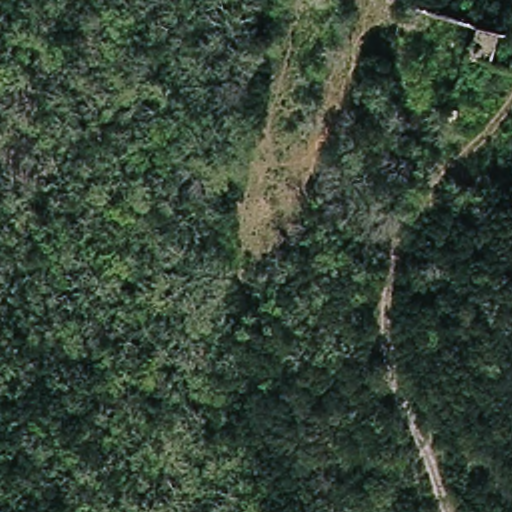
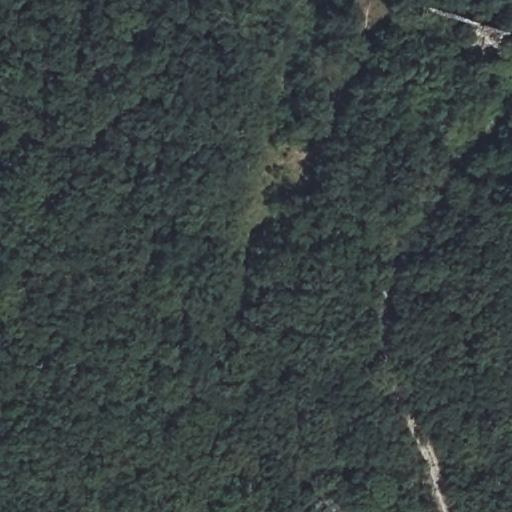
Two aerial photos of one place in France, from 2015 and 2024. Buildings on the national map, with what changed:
unchanged [(498,29),(493,64),(464,64),(470,21),(498,29)]

